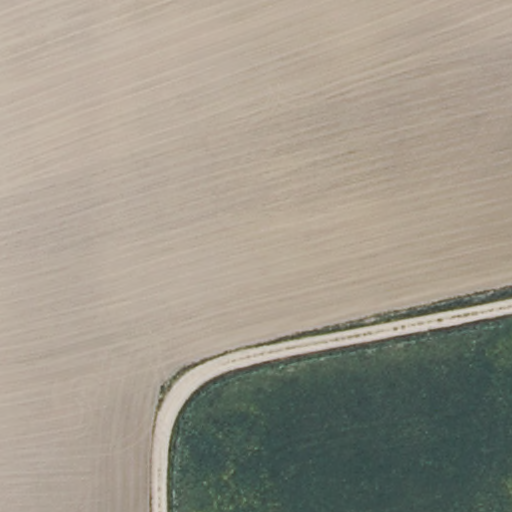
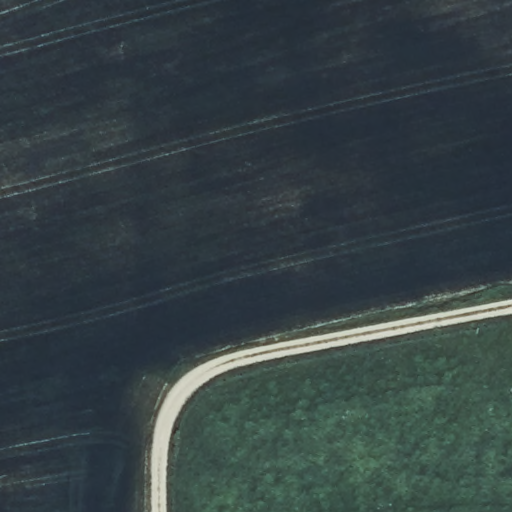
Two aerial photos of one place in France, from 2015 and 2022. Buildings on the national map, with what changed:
unchanged [(205,433),(218,458),(199,468),(185,442),(205,433)]

